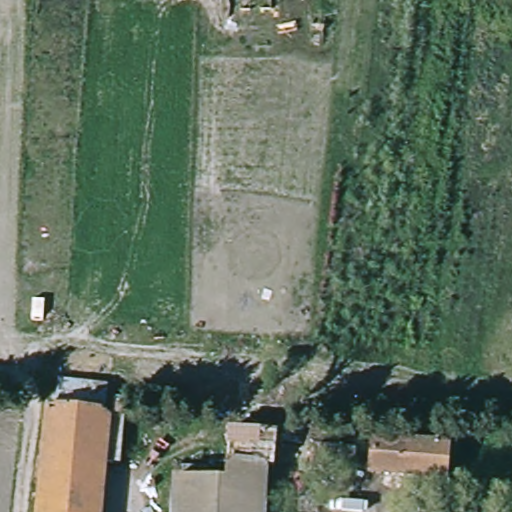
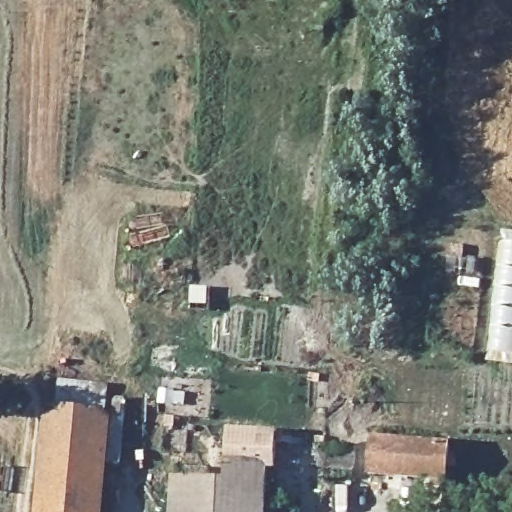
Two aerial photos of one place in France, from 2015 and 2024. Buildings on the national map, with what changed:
new [(488,352),(499,242),(512,244),(512,356),(488,352)]
unchanged [(60,382),(109,386),(107,412),(58,408),(60,382)]
unchanged [(112,413),(103,512),(40,512),(49,407),(58,408),(107,412),(112,413)]
unchanged [(231,434),(278,436),(277,468),(267,469),(265,512),(178,512),(179,482),(229,485),(231,434)]
unchanged [(450,446),(447,480),(372,475),(375,439),(450,446)]
unchanged [(356,451),(354,472),(314,468),(315,447),(356,451)]

